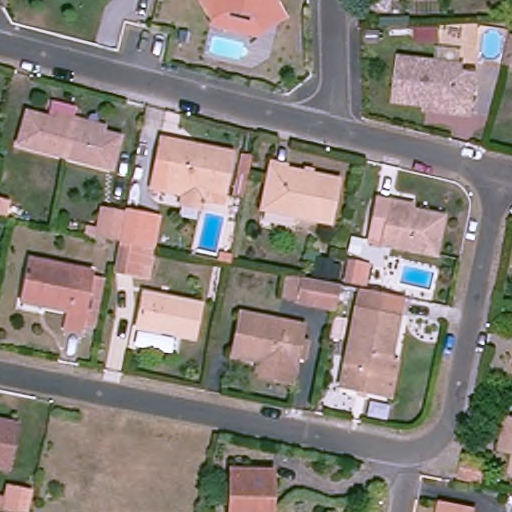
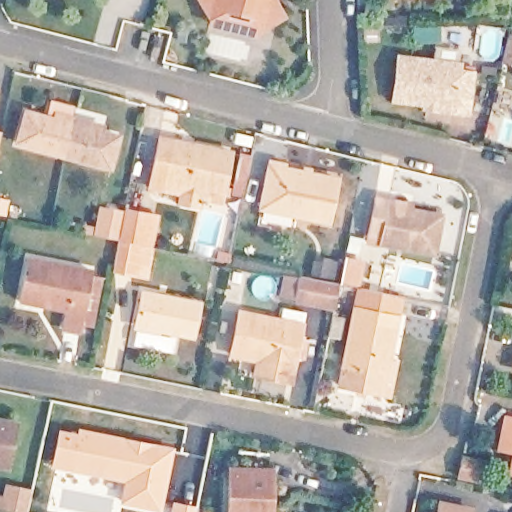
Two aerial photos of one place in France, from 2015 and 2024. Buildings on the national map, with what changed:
unchanged [(247,26),(226,19),(211,29),(191,0),(272,0),(270,10),(275,17),(280,25),(274,29),(257,41),(247,26)]
unchanged [(509,31),(512,32),(512,62),(502,60),(509,31)]
unchanged [(430,112),(430,107),(398,104),(403,61),(465,69),(463,75),(478,76),(475,101),(460,100),(460,106),(458,115),(430,112)]
unchanged [(30,105),(33,106),(76,119),(122,131),(113,163),(67,150),(26,139),(21,137),(30,105)]
unchanged [(172,195),(175,182),(156,177),(167,139),(238,156),(230,195),(227,207),(172,195)]
unchanged [(337,180),(328,220),(262,205),(272,165),(337,180)]
demolished [(22,187),(16,217),(0,214),(0,188),(2,181),(22,187)]
unchanged [(397,201),(396,206),(444,217),(436,255),(388,244),(389,238),(374,235),(382,198),(397,201)]
unchanged [(164,215),(152,276),(134,273),(114,268),(121,235),(100,231),(107,202),(127,207),(149,212),(144,240),(149,213),(164,215)]
unchanged [(30,295),(39,257),(101,271),(89,332),(73,329),(76,315),(52,309),(29,303),(30,295)]
unchanged [(280,300),(284,274),(310,278),(312,258),(330,262),(327,280),(337,285),(333,313),(280,300)]
unchanged [(367,258),(367,283),(344,282),(343,258),(367,258)]
unchanged [(407,298),(395,358),(403,360),(396,395),(344,383),(366,290),(407,298)]
unchanged [(203,305),(196,339),(137,326),(145,291),(203,305)]
unchanged [(254,372),(256,363),(257,355),(231,349),(241,309),(304,323),(301,338),(312,341),(307,362),(297,360),(293,372),(291,380),(254,372)]
unchanged [(9,466),(0,465),(0,419),(17,422),(9,466)]
unchanged [(512,423),(512,451),(504,450),(510,422),(512,423)]
new [(58,426),(75,430),(76,425),(176,446),(162,512),(119,503),(122,481),(50,465),(58,426)]
unchanged [(480,467),(477,484),(462,481),(465,465),(480,467)]
unchanged [(271,468),(277,468),(278,487),(272,487),(273,512),(240,512),(239,471),(271,468)]
unchanged [(0,484),(7,485),(31,490),(28,512),(7,512),(4,511),(0,510),(0,484)]
unchanged [(470,512),(439,512),(441,505),(471,510),(470,512)]

